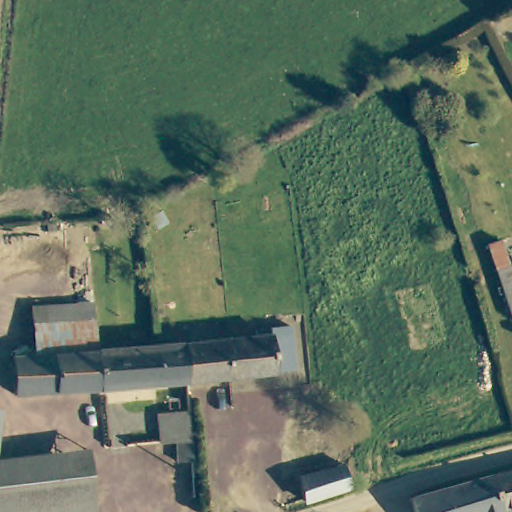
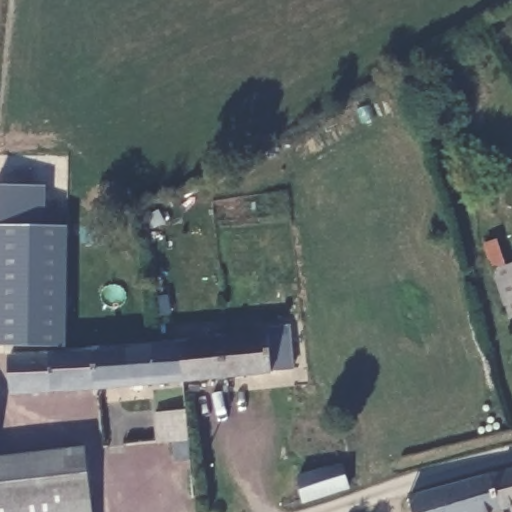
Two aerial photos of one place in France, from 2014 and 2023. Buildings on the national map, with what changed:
new [(0,186),(46,186),(46,225),(67,226),(66,346),(0,345),(0,186)]
unchanged [(503,263),(512,261),(512,315),(506,317),(482,241),(495,237),(503,263)]
unchanged [(180,385),(177,346),(250,339),(249,333),(265,331),(284,329),(285,332),(290,370),(268,372),(269,376),(180,385)]
unchanged [(10,398),(7,360),(29,358),(91,353),(153,348),(177,346),(180,385),(10,398)]
unchanged [(184,410),(189,460),(174,460),(172,440),(155,442),(153,412),(184,410)]
unchanged [(87,499),(0,511),(0,459),(81,452),(87,499)]
unchanged [(344,463),(348,486),(302,500),(296,473),(344,463)]
unchanged [(505,512),(498,512),(488,478),(512,471),(512,510),(505,512)]
unchanged [(488,478),(498,512),(410,512),(406,501),(488,478)]
unchanged [(0,511),(87,499),(89,512),(0,512),(0,511)]

